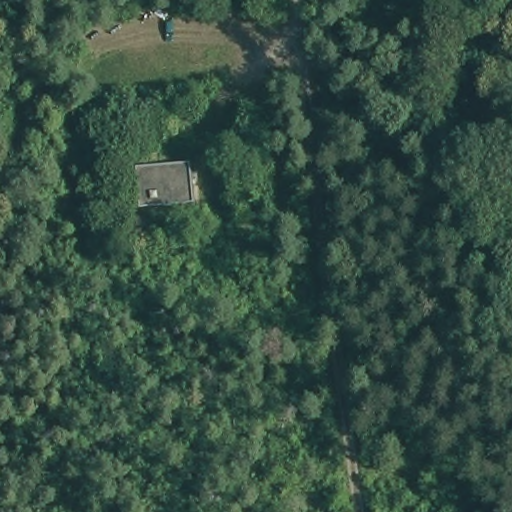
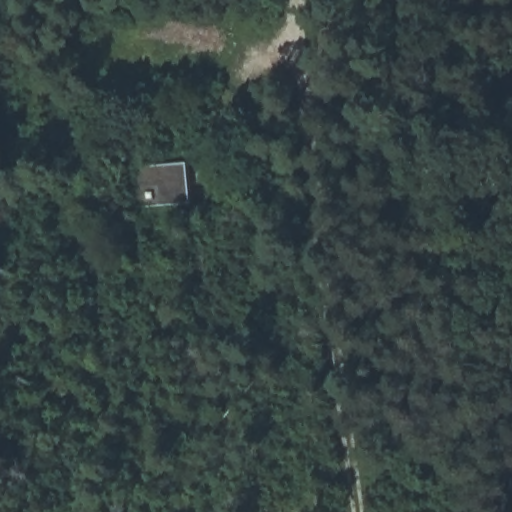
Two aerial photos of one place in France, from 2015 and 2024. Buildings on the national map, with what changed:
unchanged [(185,160),(190,205),(139,207),(132,164),(185,160)]

